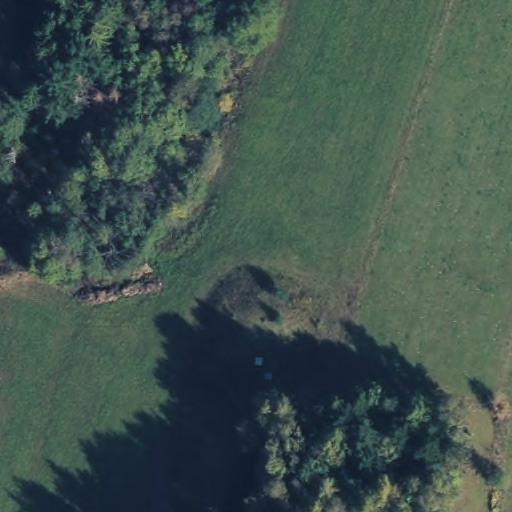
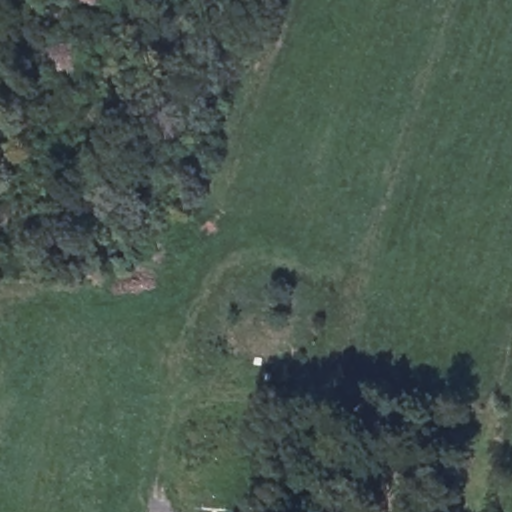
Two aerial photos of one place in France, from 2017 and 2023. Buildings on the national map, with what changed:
unchanged [(276,295),(276,300),(270,299),(271,294),(276,295)]
unchanged [(270,336),(271,336),(274,337),(277,336),(276,347),(265,346),(266,336),(270,336)]

